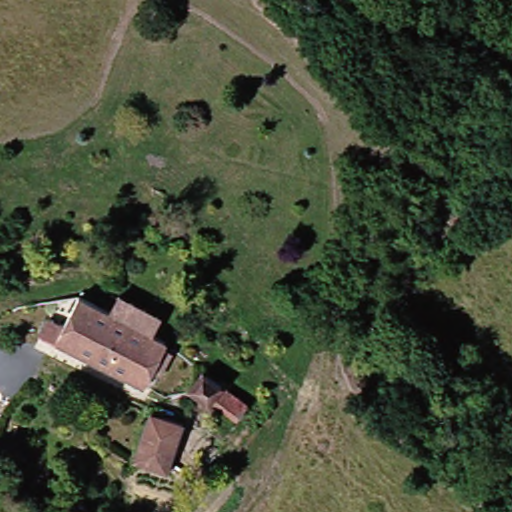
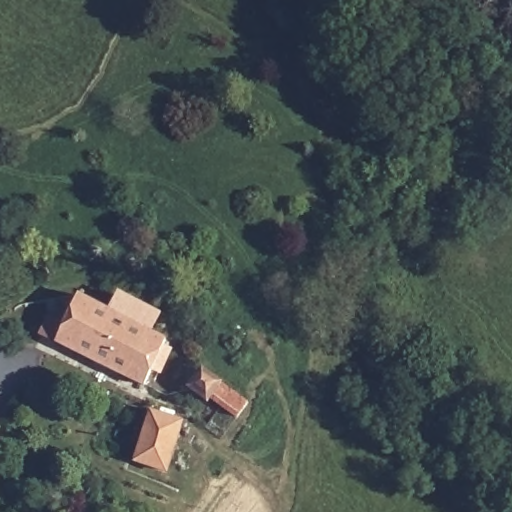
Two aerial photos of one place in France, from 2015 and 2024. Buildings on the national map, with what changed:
unchanged [(150,383),(49,328),(62,307),(77,316),(90,292),(120,309),(130,293),(167,316),(158,330),(175,338),(150,383)]
unchanged [(255,405),(245,418),(220,397),(216,402),(197,389),(210,370),(255,405)]
unchanged [(180,474),(147,465),(162,416),(192,426),(180,474)]
unchanged [(8,431),(0,450),(0,428),(8,431)]

